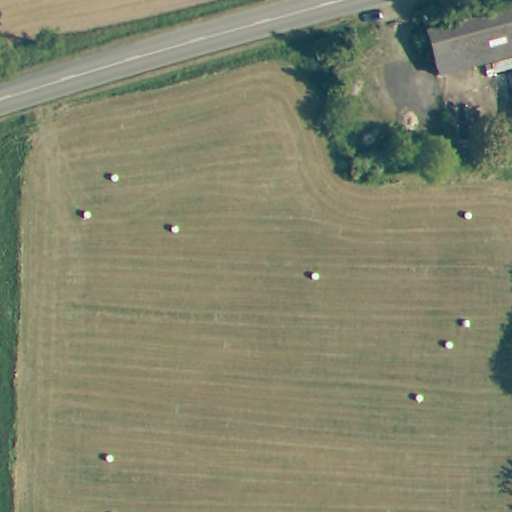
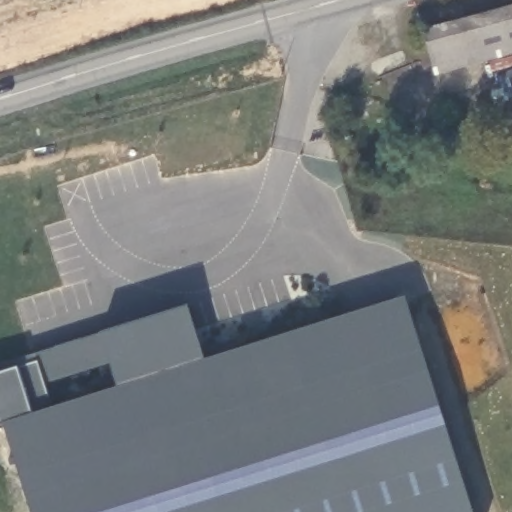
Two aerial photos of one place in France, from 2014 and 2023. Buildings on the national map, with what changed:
unchanged [(433,72),(423,30),(512,6),(512,53),(433,72)]
new [(0,428),(0,373),(0,362),(101,333),(189,305),(205,360),(404,297),(473,512),(31,512),(3,427),(0,428)]

